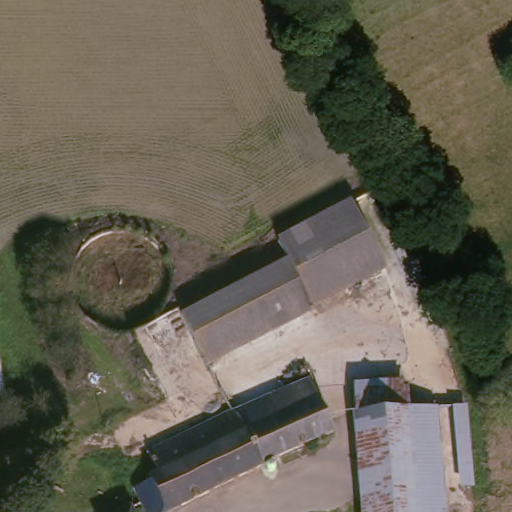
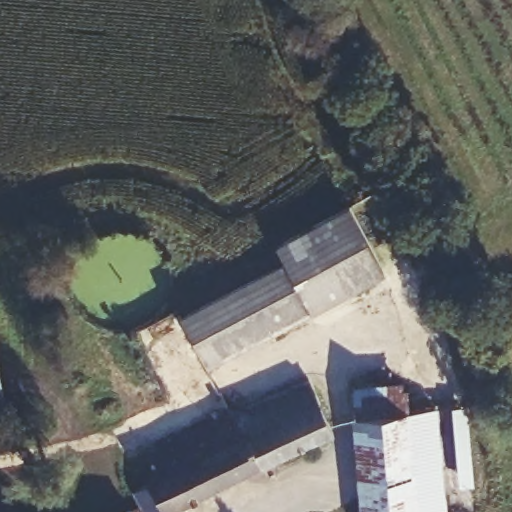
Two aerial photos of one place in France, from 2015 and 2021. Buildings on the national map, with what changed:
unchanged [(379,274),(206,373),(178,324),(281,267),(272,249),(343,210),(379,274)]
unchanged [(3,399),(0,400),(0,381),(3,399)]
unchanged [(437,417),(442,512),(361,512),(359,418),(360,385),(412,384),(412,390),(410,418),(437,417)]
unchanged [(159,487),(157,481),(164,478),(154,458),(181,447),(253,417),(265,439),(271,437),(295,426),(285,404),(321,388),(330,407),(341,428),(321,444),(178,512),(147,512),(145,507),(145,505),(141,495),(142,495),(159,487)]

